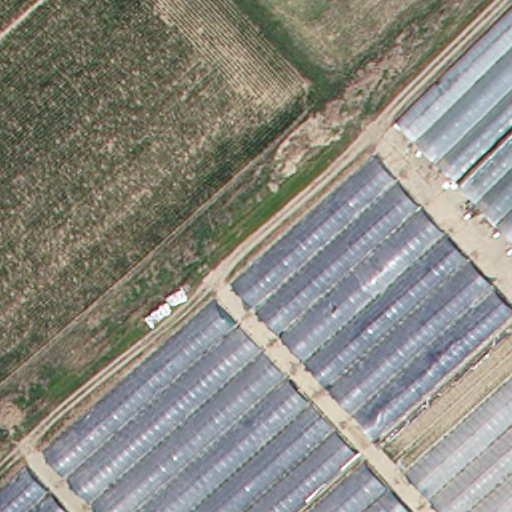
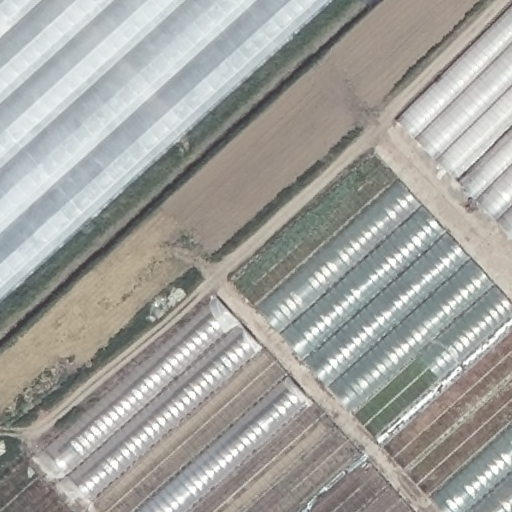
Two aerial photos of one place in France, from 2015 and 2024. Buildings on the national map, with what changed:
new [(0,301),(0,0),(333,0),(0,301)]
unchanged [(445,173),(388,120),(511,0),(512,0),(512,108),(445,173)]
unchanged [(512,121),(512,244),(450,181),(512,121)]
unchanged [(362,437),(220,282),(363,152),(507,309),(362,437)]
unchanged [(205,294),(402,512),(90,512),(34,449),(205,294)]
unchanged [(512,325),(512,512),(442,512),(381,441),(512,325)]
demolished [(0,512),(0,480),(19,462),(63,512),(0,512)]

